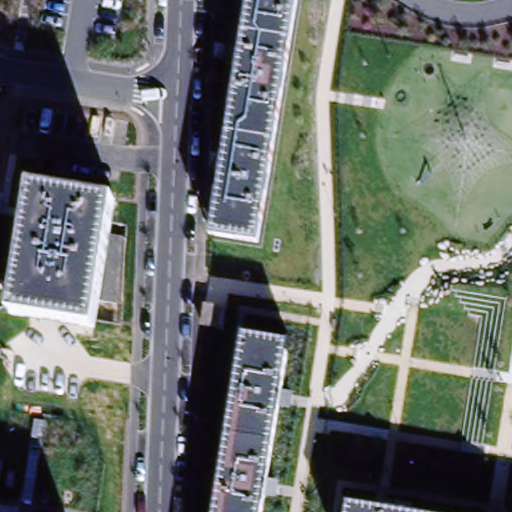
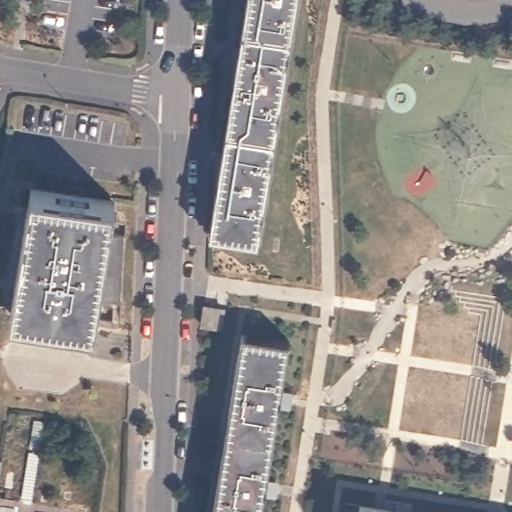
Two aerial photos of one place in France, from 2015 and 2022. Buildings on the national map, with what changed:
unchanged [(299,0),(259,242),(213,235),(251,0),(299,0)]
unchanged [(28,190),(112,204),(108,230),(125,231),(120,297),(98,296),(91,330),(9,316),(28,190)]
unchanged [(205,301),(225,304),(221,324),(202,321),(205,301)]
unchanged [(244,330),(279,336),(291,338),(283,387),(295,389),(293,405),(281,402),(269,477),(281,479),(278,495),(267,493),(264,512),(214,512),(244,330)]
unchanged [(348,503),(399,511),(400,502),(412,504),(411,512),(346,512),(348,503)]

